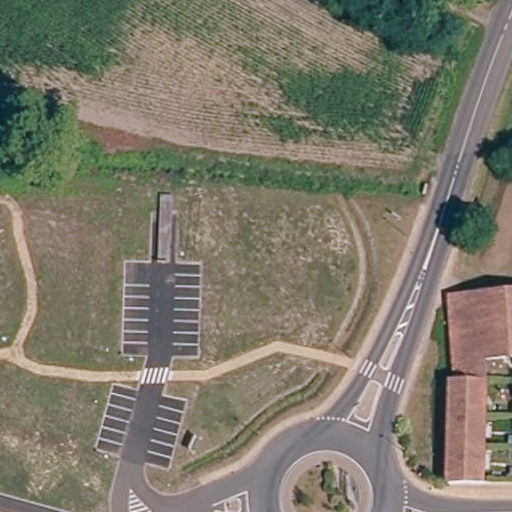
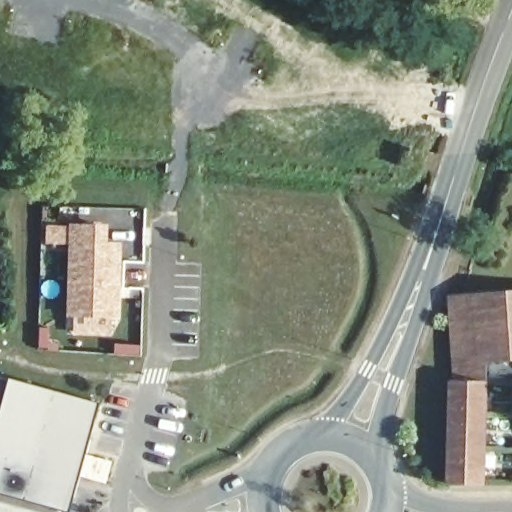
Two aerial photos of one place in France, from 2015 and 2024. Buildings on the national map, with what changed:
new [(69,243),(47,242),(48,220),(109,221),(109,239),(124,240),(121,317),(66,315),(69,243)]
unchanged [(460,297),(512,294),(512,365),(487,365),(485,485),(448,487),(451,323),(450,298),(460,297)]
new [(70,510),(0,492),(0,416),(11,377),(100,401),(70,510)]

